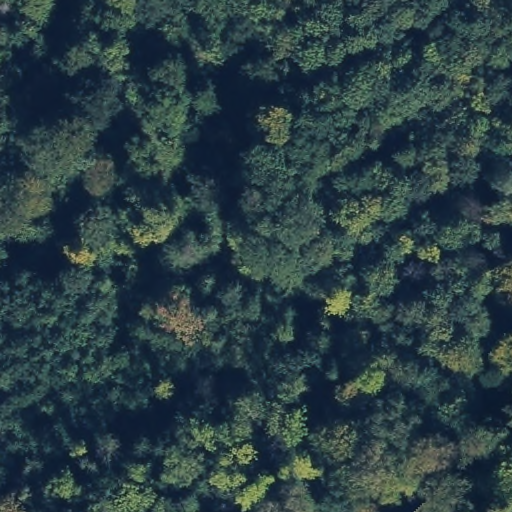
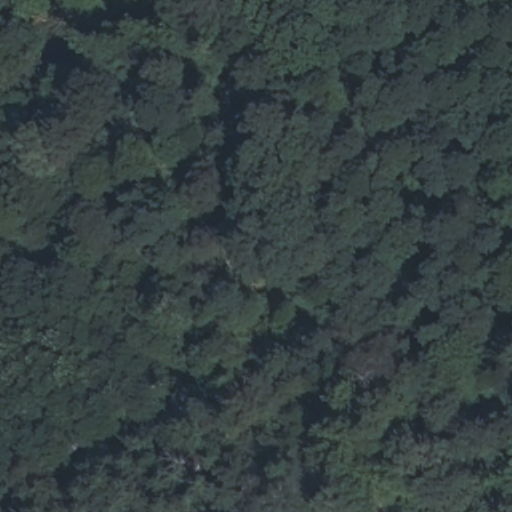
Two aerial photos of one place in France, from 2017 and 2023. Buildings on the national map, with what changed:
[]

